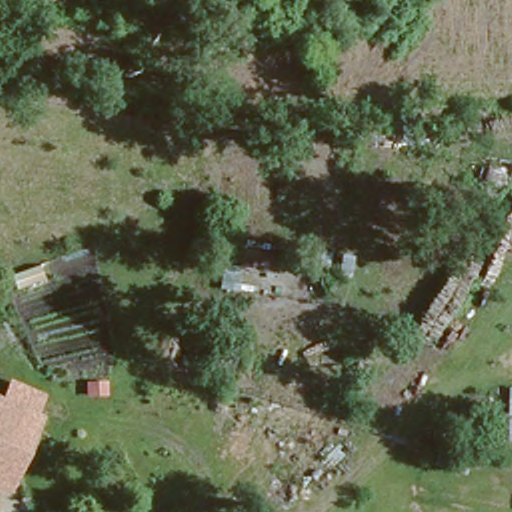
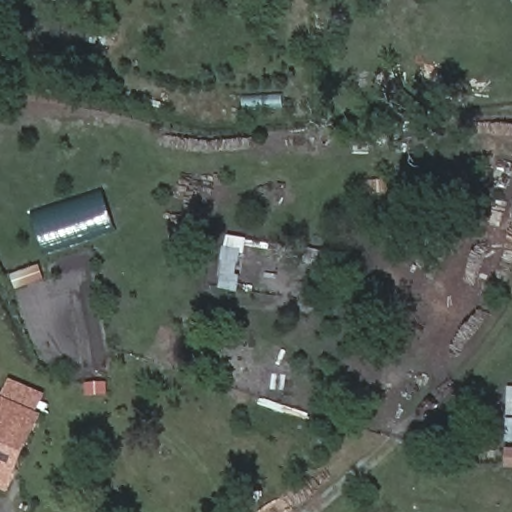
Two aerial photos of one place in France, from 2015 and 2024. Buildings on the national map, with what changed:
unchanged [(331,6),(331,0),(349,0),(349,6),(331,6)]
new [(116,231),(48,252),(35,210),(103,190),(116,231)]
unchanged [(0,488),(0,396),(39,413),(7,491),(0,488)]

